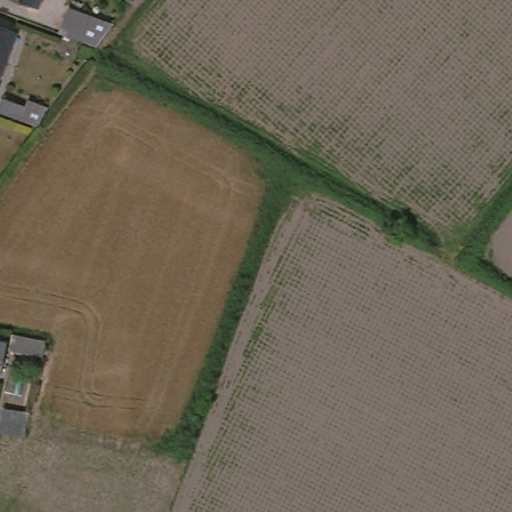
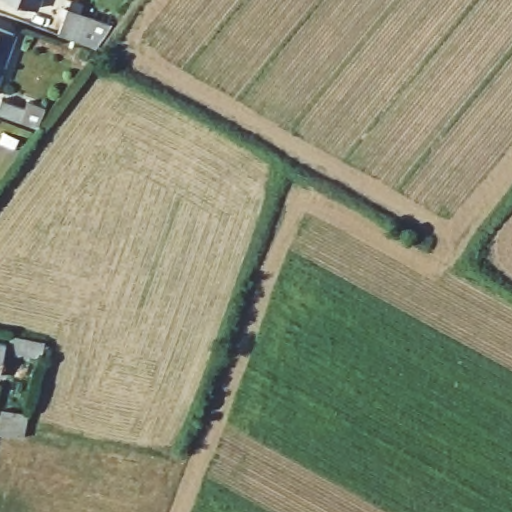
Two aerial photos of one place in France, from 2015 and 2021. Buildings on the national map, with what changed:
unchanged [(36,4),(25,0),(38,0),(36,4)]
unchanged [(118,28),(99,51),(51,30),(64,6),(118,28)]
unchanged [(20,26),(0,77),(0,18),(20,26)]
unchanged [(31,103),(25,118),(0,108),(0,101),(4,93),(31,103)]
unchanged [(31,424),(27,439),(0,434),(5,418),(31,424)]

